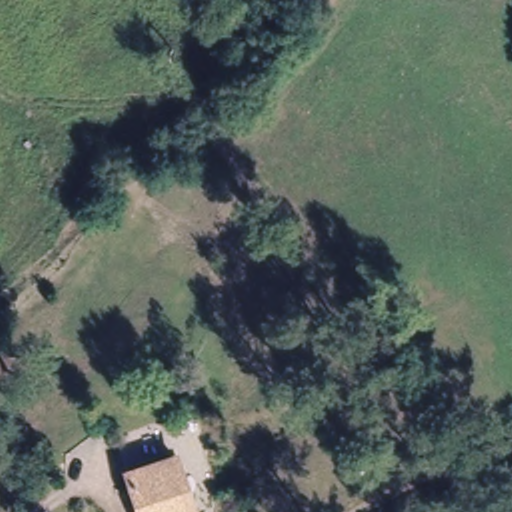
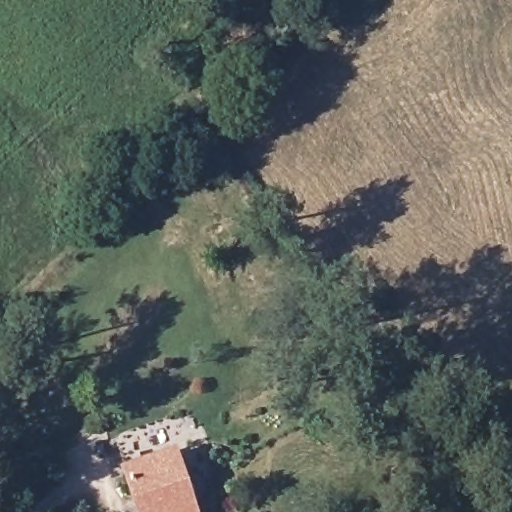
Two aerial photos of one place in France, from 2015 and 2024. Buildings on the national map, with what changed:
unchanged [(171,454),(191,512),(140,512),(125,470),(171,454)]

